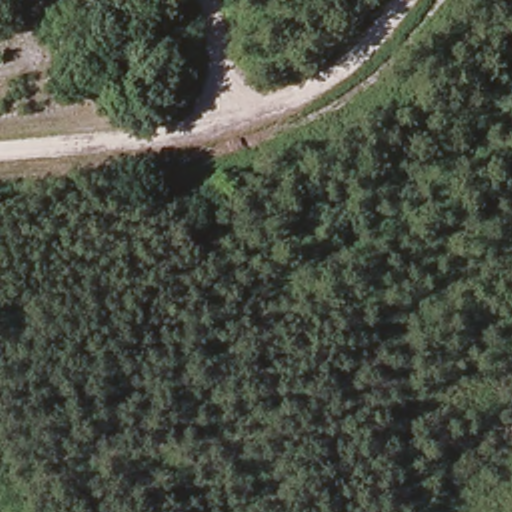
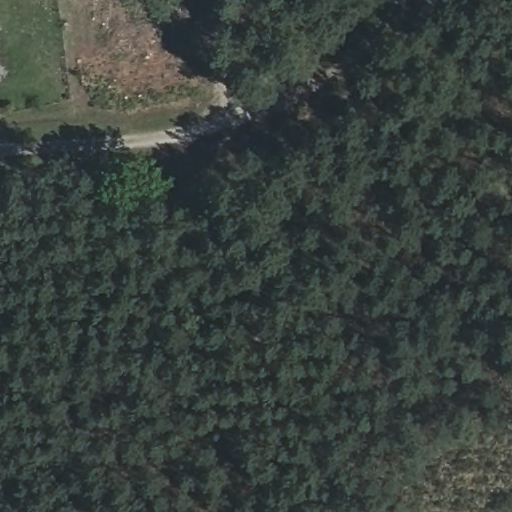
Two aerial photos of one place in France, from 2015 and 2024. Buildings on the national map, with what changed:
unchanged [(20,49),(5,56),(0,47),(0,40),(13,33),(20,49)]

